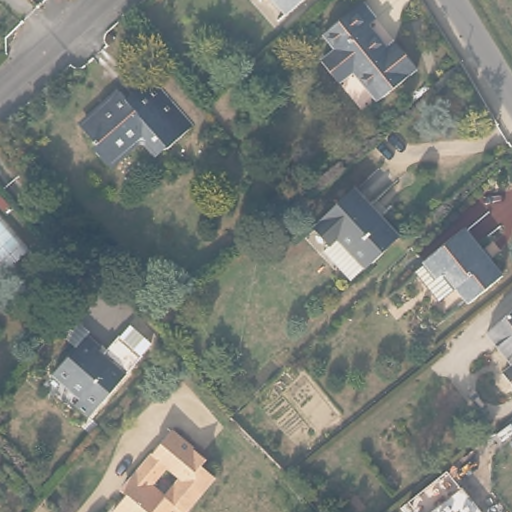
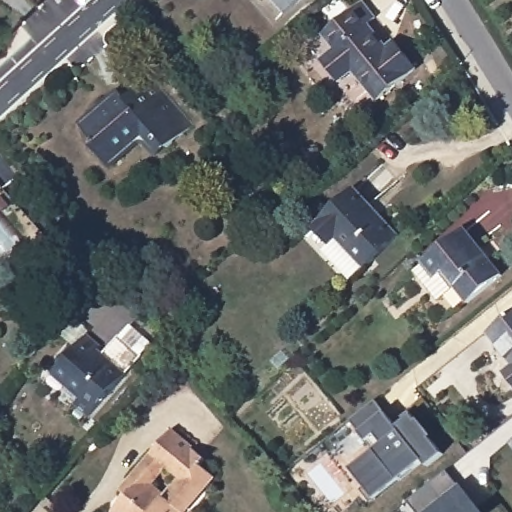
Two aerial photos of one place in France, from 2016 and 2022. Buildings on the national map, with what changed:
unchanged [(281,23),(262,0),(308,0),(281,23)]
unchanged [(373,23),(365,28),(384,52),(392,46),(414,74),(373,106),(349,76),(335,87),(317,65),(332,53),(321,41),(361,8),(373,23)]
unchanged [(192,130),(166,151),(164,148),(155,155),(141,139),(108,167),(93,149),(95,148),(89,140),(91,138),(80,125),(111,98),(117,106),(149,79),(192,130)]
unchanged [(321,243),(328,237),(317,222),(356,189),(394,234),(361,263),(348,274),(321,243)]
unchanged [(9,265),(0,255),(0,195),(38,242),(9,265)]
unchanged [(417,268),(426,261),(466,229),(503,276),(473,301),(458,283),(440,297),(417,268)]
unchanged [(502,371),(511,364),(486,331),(512,309),(512,385),(502,371)]
unchanged [(64,407),(73,397),(59,385),(86,355),(90,358),(106,339),(131,360),(78,420),(64,407)]
new [(422,461),(397,480),(375,499),(353,469),(376,450),(361,432),(351,420),(375,401),(382,416),(386,412),(398,427),(411,414),(418,421),(420,419),(433,436),(431,438),(442,452),(427,465),(422,461)]
unchanged [(200,473),(213,484),(188,512),(114,512),(124,500),(126,488),(169,438),(204,467),(200,473)]
unchanged [(419,512),(410,502),(447,472),(458,486),(462,484),(483,512),(419,512)]

